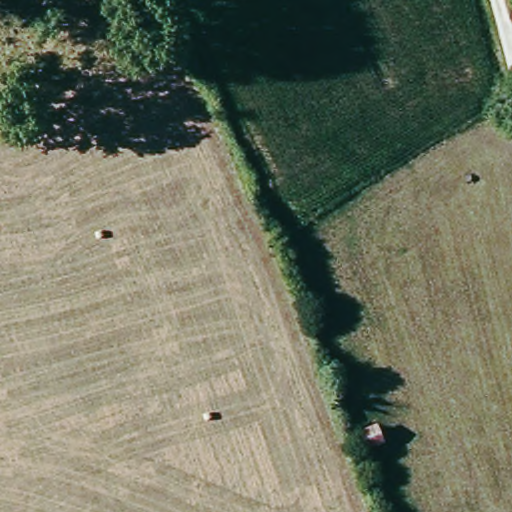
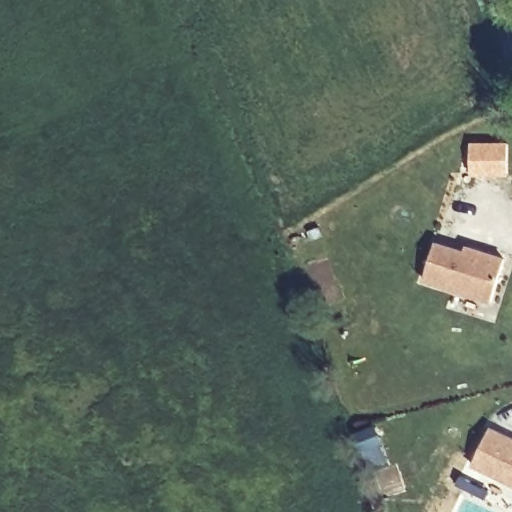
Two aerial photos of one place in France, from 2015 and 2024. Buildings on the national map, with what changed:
new [(471,145),(508,144),(507,174),(471,174),(471,145)]
new [(423,282),(436,241),(464,250),(466,242),(506,256),(490,303),(423,282)]
unchanged [(385,441),(366,448),(361,432),(380,426),(385,441)]
new [(512,439),(512,485),(472,465),(490,428),(512,439)]

